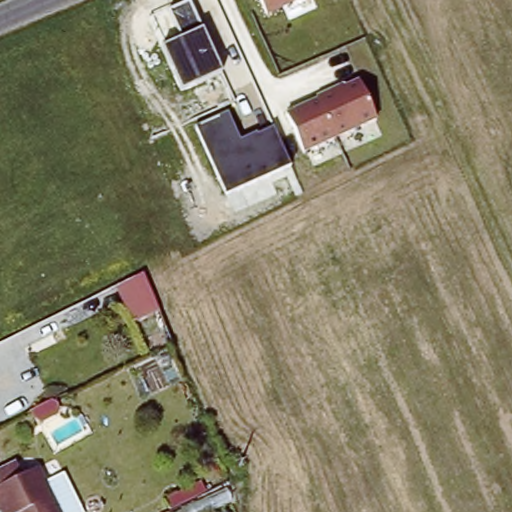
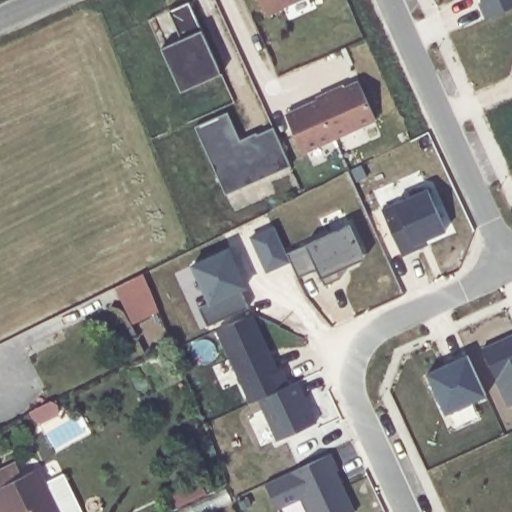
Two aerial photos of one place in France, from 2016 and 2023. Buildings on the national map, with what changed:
unchanged [(259,0),(295,0),(265,14),(259,0)]
new [(478,3),(481,0),(512,0),(512,6),(485,18),(478,3)]
unchanged [(189,1),(222,72),(182,89),(163,47),(182,38),(169,10),(189,1)]
unchanged [(375,121),(304,152),(286,115),(357,84),(375,121)]
unchanged [(290,165),(225,193),(196,125),(226,113),(238,140),(272,128),(290,165)]
new [(395,202),(428,189),(447,229),(425,239),(428,244),(402,255),(381,209),(395,202)]
new [(345,265),(340,277),(325,283),(320,275),(316,267),(296,276),(290,261),(266,272),(250,235),(274,224),(287,253),(305,244),(348,225),(363,257),(345,265)]
new [(248,287),(239,291),(247,307),(207,324),(200,307),(209,303),(191,263),(229,247),(248,287)]
new [(144,271),(159,308),(131,319),(117,285),(144,271)]
new [(316,421),(276,439),(258,398),(248,402),(216,331),(252,313),(280,371),(284,369),(290,384),(296,380),(316,421)]
new [(480,348),(512,333),(512,402),(507,405),(480,348)]
new [(445,413),(427,372),(467,354),(486,394),(445,413)]
new [(338,470),(336,471),(355,511),(352,512),(309,512),(302,497),(278,509),(265,483),(330,453),(338,470)]
unchanged [(6,507),(0,494),(0,484),(6,481),(1,469),(20,460),(25,472),(43,463),(67,512),(9,512),(6,507)]

